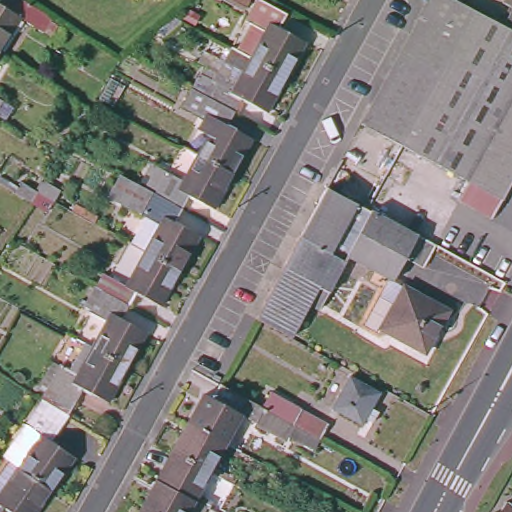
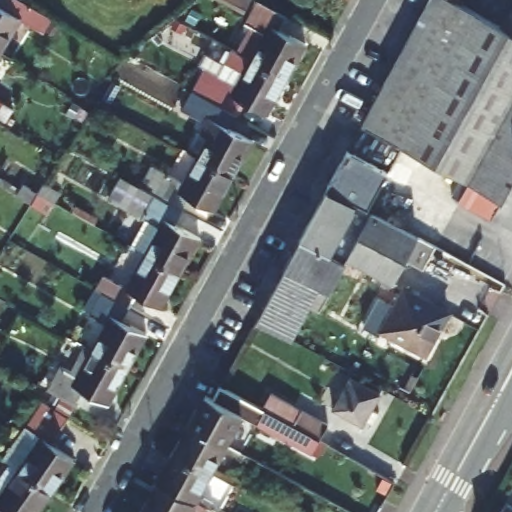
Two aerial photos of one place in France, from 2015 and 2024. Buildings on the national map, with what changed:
unchanged [(11,0),(42,19),(35,33),(15,21),(0,46),(0,0),(11,0)]
unchanged [(244,21),(256,0),(259,0),(286,14),(279,28),(305,43),(286,76),(235,49),(249,24),(244,21)]
unchanged [(457,198),(466,180),(361,122),(428,0),(463,0),(461,2),(495,20),(512,29),(512,177),(490,216),(457,198)]
unchanged [(500,9),(509,14),(512,9),(512,29),(495,20),(500,9)]
unchanged [(204,97),(215,76),(220,79),(235,49),(286,76),(267,112),(239,97),(231,111),(204,97)]
unchanged [(231,111),(225,125),(251,140),(233,175),(197,156),(207,138),(195,132),(201,122),(193,117),(204,97),(231,111)]
unchanged [(1,104),(0,107),(0,103),(1,104)]
new [(390,174),(370,210),(328,188),(348,151),(390,174)]
unchanged [(152,193),(164,172),(183,182),(197,156),(233,175),(215,209),(187,195),(180,209),(152,193)]
unchanged [(152,193),(180,209),(173,222),(200,237),(181,271),(145,252),(131,244),(143,220),(106,199),(120,176),(152,193)]
unchanged [(365,211),(364,213),(351,236),(310,213),(323,188),(365,211)]
unchanged [(351,236),(339,259),(336,264),(295,241),(310,213),(351,236)]
unchanged [(339,259),(351,236),(364,213),(410,237),(384,284),(339,259)]
unchanged [(310,312),(301,307),(305,299),(273,281),(295,241),(336,264),(310,312)]
unchanged [(181,271),(162,306),(135,292),(128,304),(101,290),(109,274),(128,284),(145,252),(181,271)]
unchanged [(305,299),(301,307),(285,339),(251,320),(273,281),(305,299)]
unchanged [(93,349),(107,325),(88,314),(101,290),(128,304),(121,319),(148,332),(129,369),(93,349)]
unchanged [(366,324),(380,301),(388,305),(396,290),(441,315),(418,356),(374,331),(375,329),(366,324)]
unchanged [(129,369),(111,404),(83,389),(66,417),(40,401),(60,365),(70,369),(84,344),(93,349),(129,369)]
unchanged [(380,394),(361,428),(332,412),(352,378),(380,394)]
unchanged [(327,426),(318,443),(322,445),(316,454),(291,440),(288,444),(242,418),(226,446),(191,426),(207,397),(213,400),(220,387),(291,428),(301,412),(327,426)]
unchanged [(9,463),(1,457),(40,401),(66,417),(50,441),(73,459),(51,491),(9,463)]
unchanged [(210,474),(175,455),(191,426),(226,446),(210,474)]
unchanged [(210,474),(195,502),(160,482),(175,455),(210,474)]
unchanged [(9,463),(51,491),(37,512),(11,512),(5,508),(2,512),(0,512),(0,477),(9,463)]
unchanged [(160,482),(195,502),(209,510),(208,512),(145,512),(144,511),(160,482)]
unchanged [(512,512),(507,512),(508,510),(512,512)]
unchanged [(144,511),(145,512),(144,512),(144,511)]

